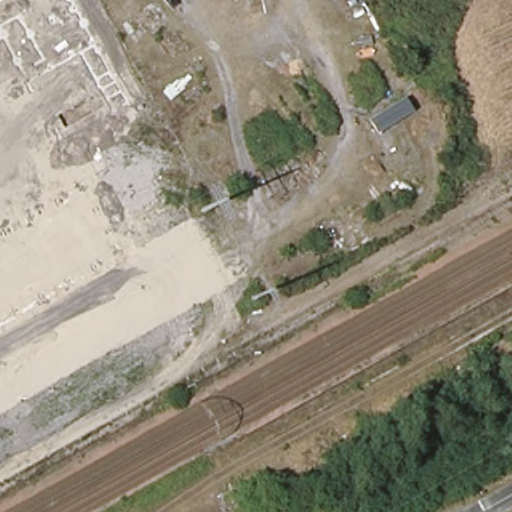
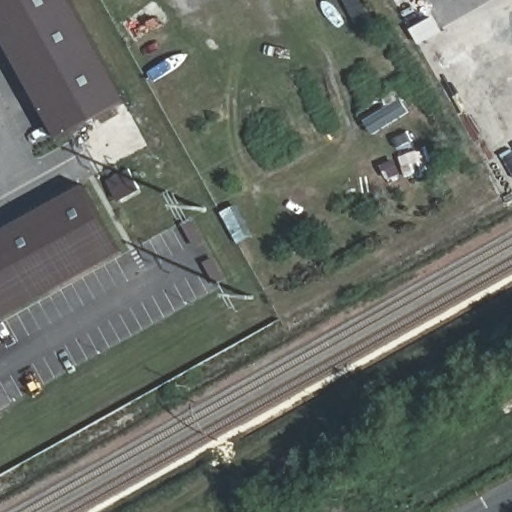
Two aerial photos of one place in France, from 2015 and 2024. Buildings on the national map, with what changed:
new [(61,140),(0,32),(0,1),(2,0),(73,0),(129,101),(61,140)]
new [(0,322),(0,234),(86,185),(125,251),(0,322)]

